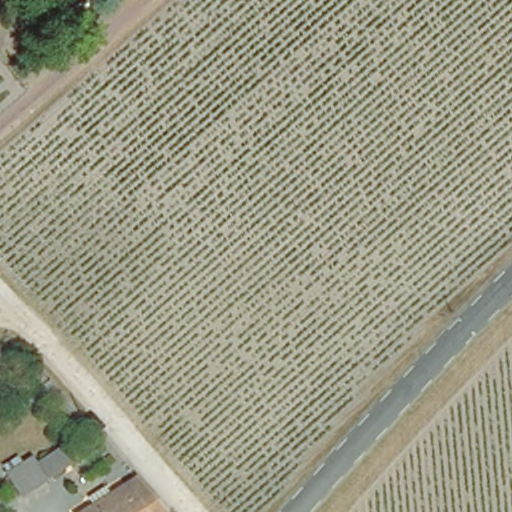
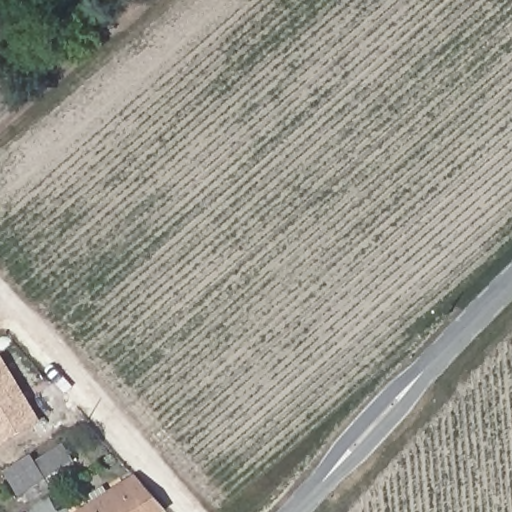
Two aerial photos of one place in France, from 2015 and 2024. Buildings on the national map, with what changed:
new [(43,422),(1,449),(0,447),(0,358),(3,356),(43,422)]
unchanged [(37,461),(65,444),(75,460),(48,478),(37,461)]
unchanged [(22,495),(7,473),(2,465),(17,455),(23,463),(32,458),(46,480),(22,495)]
unchanged [(162,512),(82,512),(92,505),(87,497),(104,486),(109,495),(136,477),(161,505),(165,510),(162,512)]

